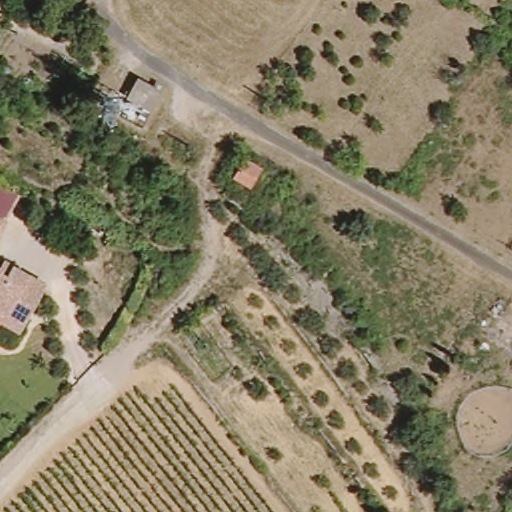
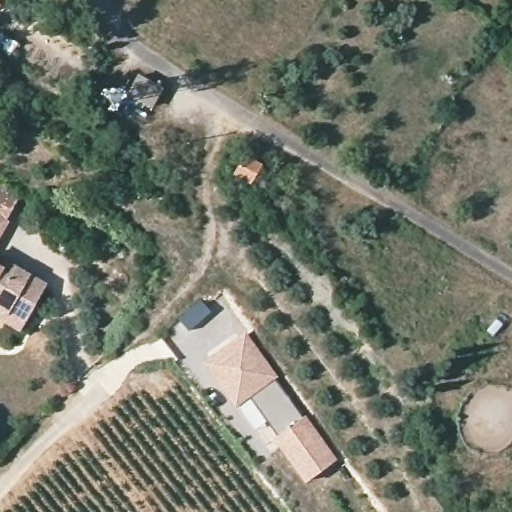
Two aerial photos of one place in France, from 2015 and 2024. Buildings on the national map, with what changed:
unchanged [(152,106),(129,94),(139,75),(162,88),(152,106)]
unchanged [(251,184),(233,174),(244,155),(262,165),(251,184)]
unchanged [(5,222),(0,230),(0,219),(5,222)]
unchanged [(0,318),(0,265),(3,260),(12,265),(45,285),(32,307),(20,330),(0,318)]
new [(236,343),(330,465),(305,485),(241,403),(232,410),(201,370),(236,343)]

